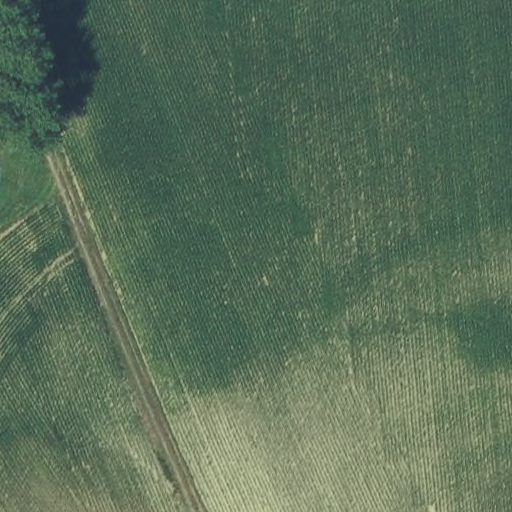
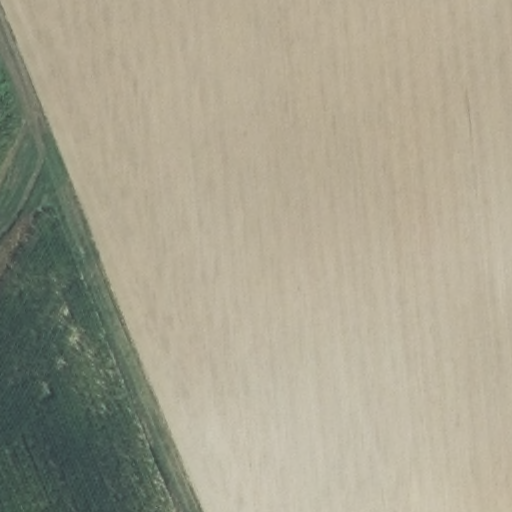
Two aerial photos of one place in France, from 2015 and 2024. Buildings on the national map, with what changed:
unchanged [(9,106),(0,196),(0,106),(9,106)]

